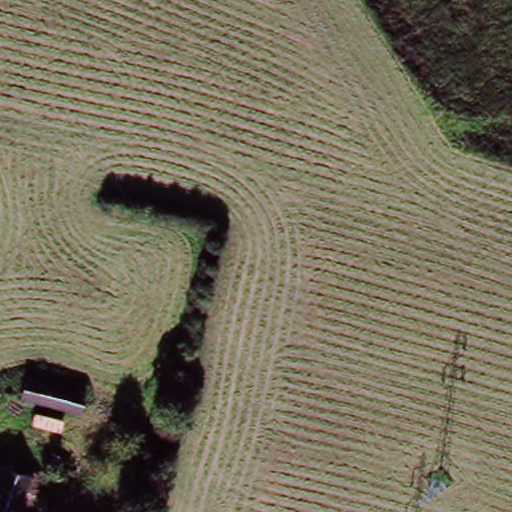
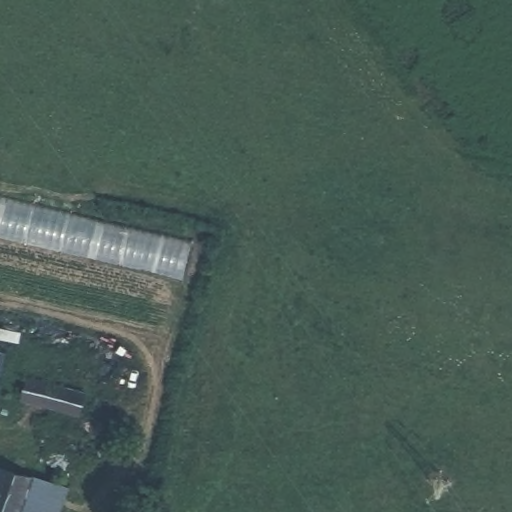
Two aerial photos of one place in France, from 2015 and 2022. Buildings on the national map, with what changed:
new [(0,236),(0,201),(191,241),(183,278),(0,236)]
new [(6,350),(0,374),(0,349),(6,350)]
unchanged [(81,396),(78,417),(17,402),(25,382),(81,396)]
unchanged [(0,471),(0,465),(2,465),(0,471)]
unchanged [(19,512),(0,512),(0,471),(2,465),(32,476),(19,512)]

